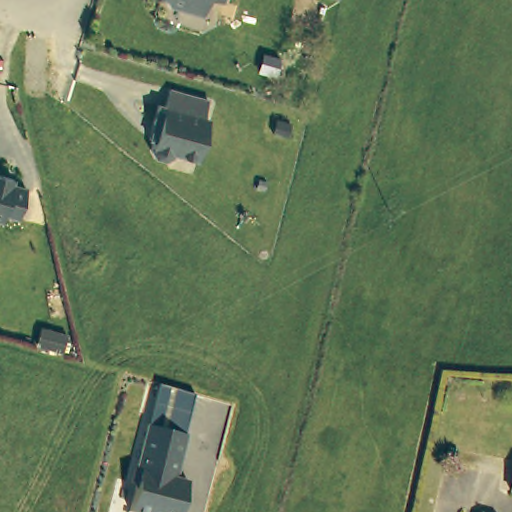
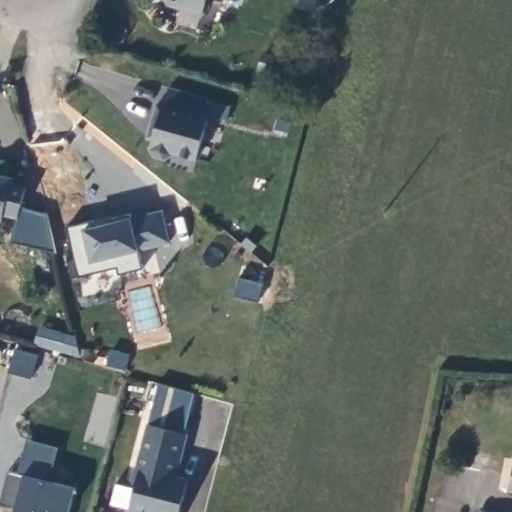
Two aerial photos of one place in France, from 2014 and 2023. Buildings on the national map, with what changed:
unchanged [(169,2),(168,0),(206,0),(202,13),(169,2)]
unchanged [(223,0),(222,2),(216,0),(223,0)]
unchanged [(205,114),(210,115),(199,156),(175,150),(174,153),(172,154),(170,155),(157,152),(154,145),(161,122),(156,122),(160,104),(166,105),(170,87),(209,98),(205,114)]
unchanged [(288,133),(275,129),(278,117),(292,120),(288,133)]
unchanged [(0,218),(0,176),(8,178),(7,183),(22,187),(15,217),(1,213),(0,218)]
new [(54,253),(9,242),(15,217),(17,208),(47,217),(54,253)]
new [(139,250),(142,269),(119,274),(117,267),(79,275),(68,227),(94,222),(95,227),(133,218),(162,210),(171,243),(139,250)]
new [(241,272),(265,278),(259,298),(236,292),(241,272)]
unchanged [(36,343),(40,327),(64,334),(60,349),(36,343)]
unchanged [(146,422),(159,384),(194,394),(181,431),(146,422)]
unchanged [(175,475),(187,479),(181,498),(177,497),(175,502),(179,508),(177,512),(145,512),(127,507),(133,485),(130,479),(134,465),(135,465),(146,422),(186,432),(175,475)]
new [(49,481),(75,487),(68,512),(14,512),(15,509),(2,504),(10,471),(18,473),(27,438),(57,446),(49,481)]
unchanged [(508,488),(512,470),(512,489),(508,488)]

